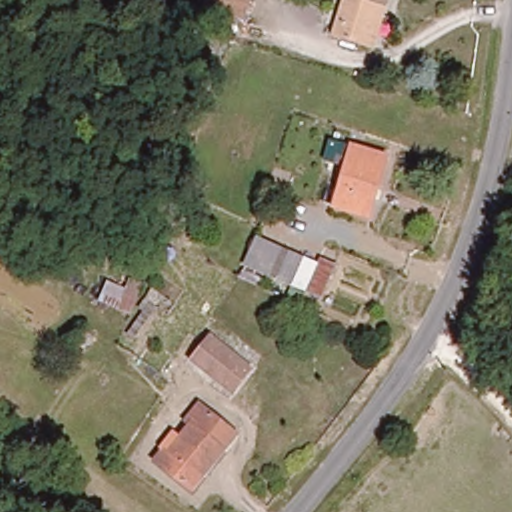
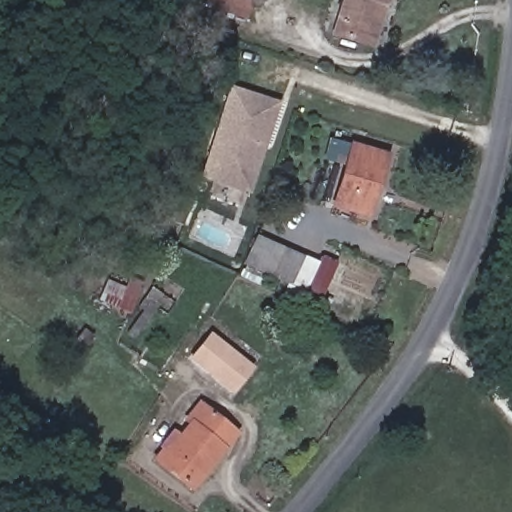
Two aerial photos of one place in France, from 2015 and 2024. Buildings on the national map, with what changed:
unchanged [(204,8),(207,0),(248,0),(240,23),(204,8)]
unchanged [(360,39),(328,28),(337,0),(381,0),(367,42),(360,39)]
new [(252,195),(200,179),(230,86),(280,102),(252,195)]
unchanged [(385,157),(367,218),(332,206),(350,147),(385,157)]
unchanged [(294,287),(243,266),(254,234),(303,254),(294,287)]
unchanged [(335,269),(322,302),(308,297),(322,263),(335,269)]
new [(137,308),(131,314),(99,301),(107,281),(124,288),(128,277),(151,286),(164,295),(134,339),(126,333),(142,311),(137,308)]
unchanged [(191,358),(209,337),(246,368),(250,371),(232,395),(202,369),(191,358)]
unchanged [(159,460),(169,448),(175,454),(197,427),(190,422),(203,405),(239,436),(229,448),(195,492),(159,460)]

